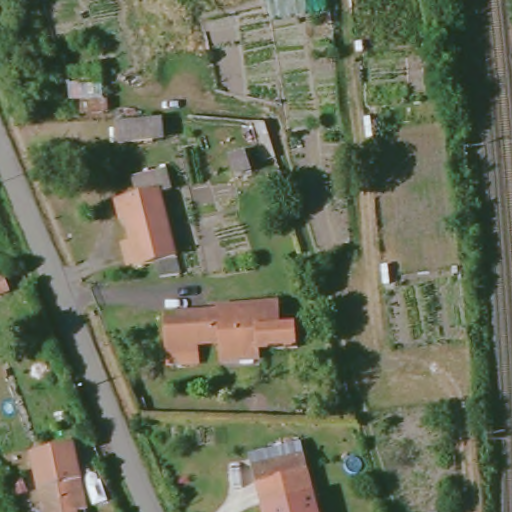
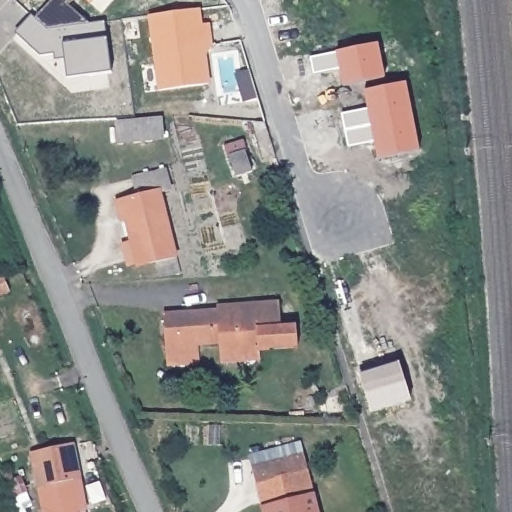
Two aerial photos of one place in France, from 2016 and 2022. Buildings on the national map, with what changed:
new [(83,0),(94,0),(90,5),(83,0)]
demolished [(270,21),(266,0),(327,0),(328,14),(270,21)]
new [(143,12),(202,6),(205,20),(210,20),(215,50),(205,51),(212,82),(157,90),(143,12)]
new [(110,70),(65,76),(62,57),(54,57),(55,52),(42,56),(15,33),(30,17),(45,31),(105,20),(110,70)]
new [(385,73),(342,82),(337,68),(310,73),(305,55),(379,40),(385,73)]
unchanged [(72,79),(106,77),(105,110),(74,110),(72,79)]
new [(375,159),(362,91),(406,80),(420,150),(375,159)]
unchanged [(162,117),(165,140),(120,144),(117,122),(162,117)]
unchanged [(230,157),(245,151),(252,171),(237,176),(230,157)]
unchanged [(156,256),(140,260),(127,216),(123,216),(118,197),(140,192),(135,174),(171,165),(177,184),(160,187),(177,251),(182,269),(160,271),(156,256)]
unchanged [(8,292),(0,295),(0,277),(2,277),(8,292)]
unchanged [(232,345),(199,347),(200,352),(167,354),(163,317),(216,313),(253,310),(253,306),(279,303),(280,326),(297,325),(298,350),(275,352),(275,347),(257,348),(257,353),(232,355),(232,345)]
new [(411,401),(370,415),(357,373),(398,358),(411,401)]
unchanged [(263,509),(257,482),(252,466),(249,453),(250,453),(300,441),(303,453),(307,471),(313,496),(263,509)]
unchanged [(32,449),(73,442),(88,512),(45,512),(32,449)]
unchanged [(0,472),(10,468),(13,479),(20,477),(27,493),(10,498),(0,472)]
unchanged [(263,509),(313,496),(318,512),(264,512),(263,509)]

